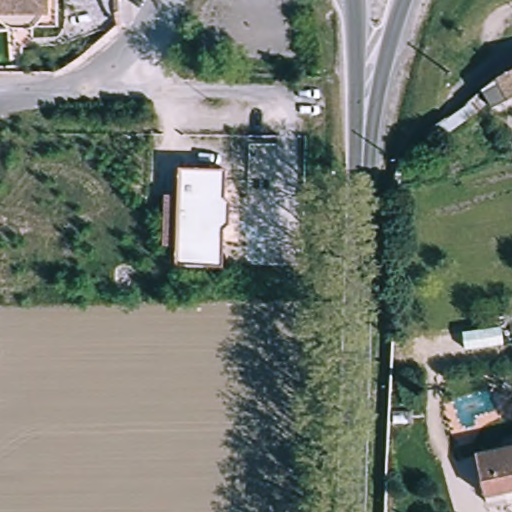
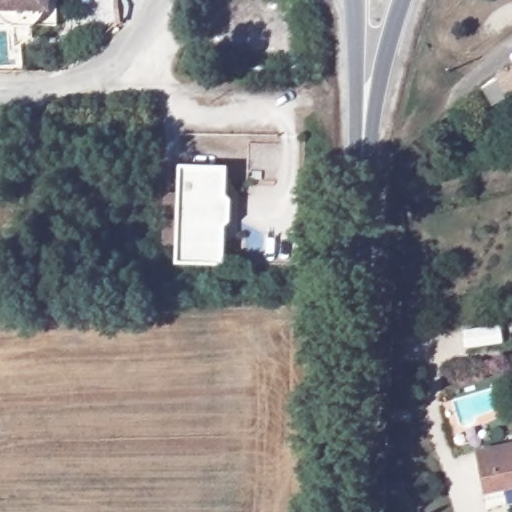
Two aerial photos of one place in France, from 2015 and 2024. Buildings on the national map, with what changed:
unchanged [(0,7),(0,0),(45,0),(44,7),(0,7)]
unchanged [(512,73),(512,102),(474,124),(463,104),(502,75),(512,73)]
unchanged [(164,192),(179,193),(181,168),(226,172),(219,267),(174,264),(176,246),(161,245),(164,192)]
unchanged [(486,496),(479,464),(476,454),(512,445),(512,489),(486,496)]

